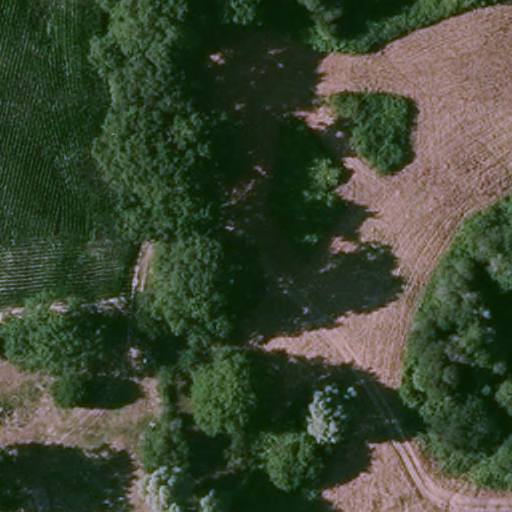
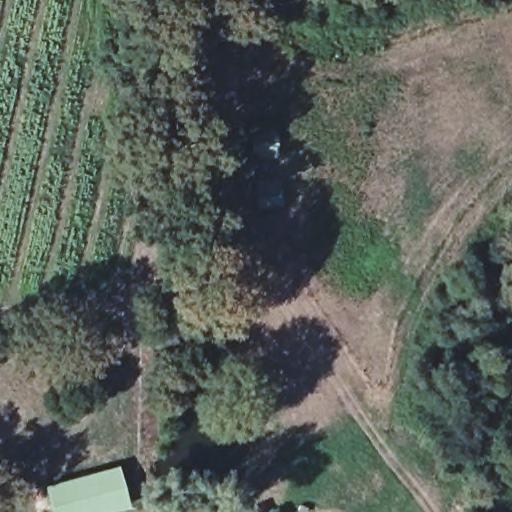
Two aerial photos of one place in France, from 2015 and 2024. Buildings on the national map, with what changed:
new [(118,462),(131,505),(108,512),(52,512),(44,484),(118,462)]

